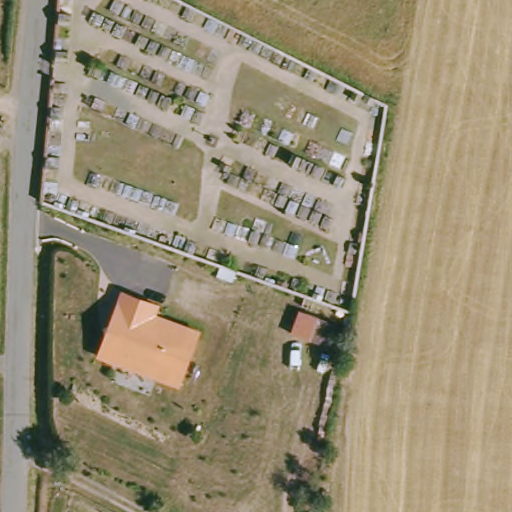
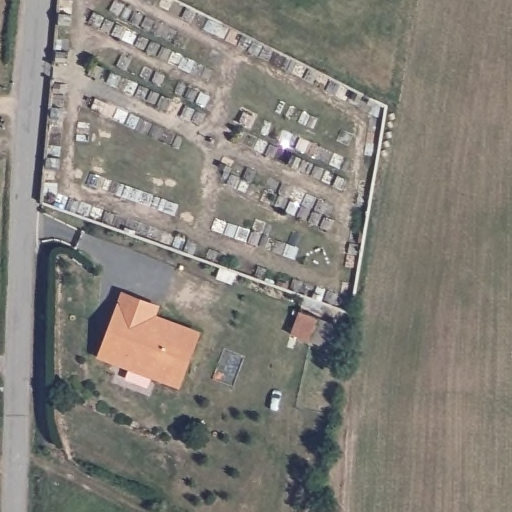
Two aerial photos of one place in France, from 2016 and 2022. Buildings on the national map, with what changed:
unchanged [(120,293),(160,306),(156,318),(200,334),(180,392),(97,359),(120,293)]
unchanged [(300,313),(339,327),(332,351),(292,336),(300,313)]

